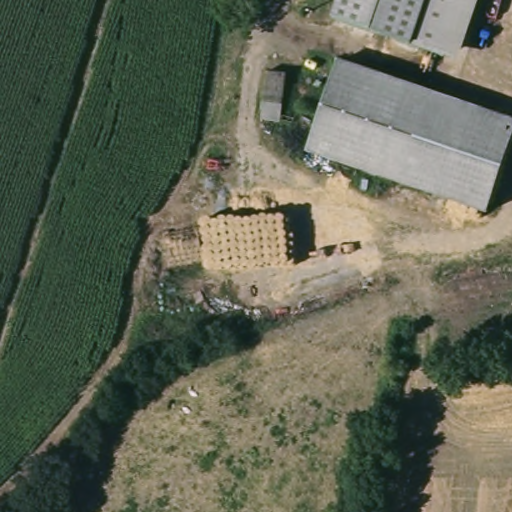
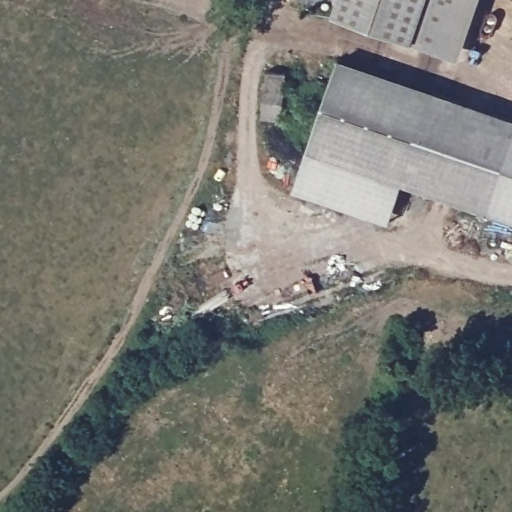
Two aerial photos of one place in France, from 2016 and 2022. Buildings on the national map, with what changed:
unchanged [(450,61),(323,14),(328,0),(473,0),(450,61)]
unchanged [(335,57),(512,119),(512,147),(486,215),(298,153),(335,57)]
unchanged [(287,106),(265,102),(266,73),(290,77),(287,106)]
new [(512,147),(512,220),(487,212),(512,147)]
new [(390,224),(292,192),(305,155),(401,187),(390,224)]

